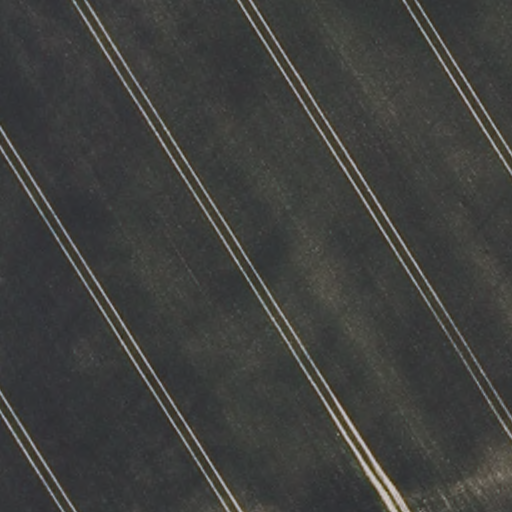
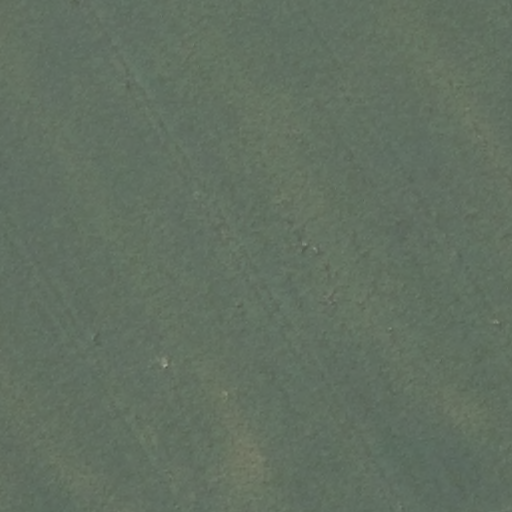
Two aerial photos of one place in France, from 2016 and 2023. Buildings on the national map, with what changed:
[]

